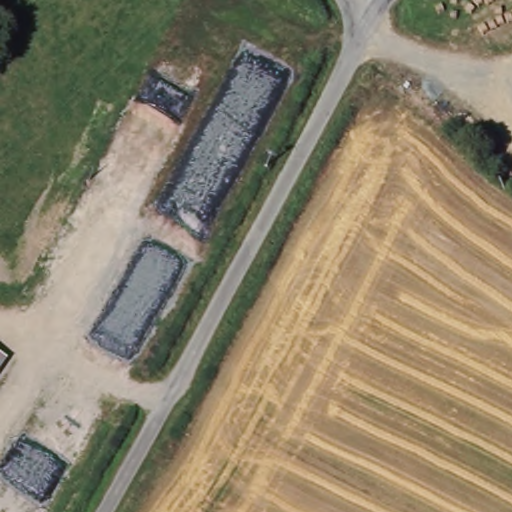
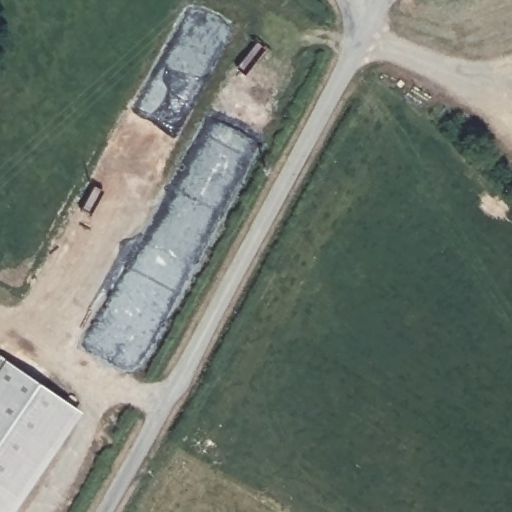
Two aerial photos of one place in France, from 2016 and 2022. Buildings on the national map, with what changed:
unchanged [(0,355),(1,356),(0,357),(0,355)]
new [(67,407),(0,503),(0,394),(16,371),(67,407)]

